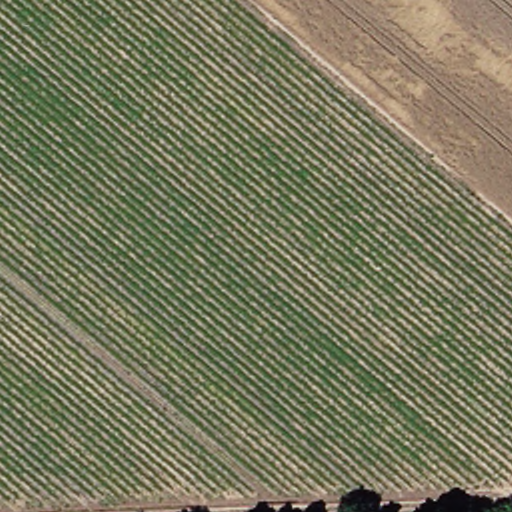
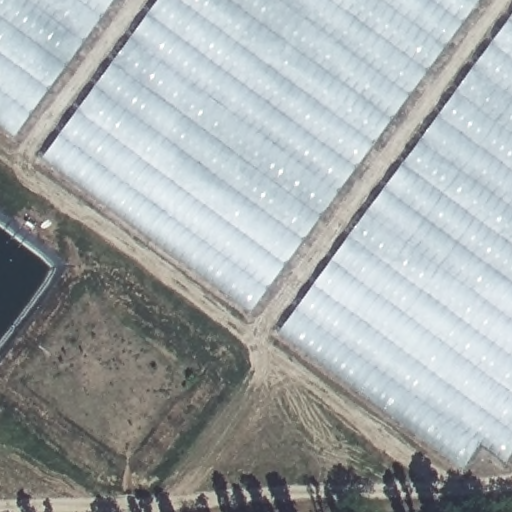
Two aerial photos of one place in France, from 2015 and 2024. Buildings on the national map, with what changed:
new [(0,129),(0,0),(115,0),(13,139),(0,129)]
new [(480,0),(249,313),(40,158),(157,0),(480,0)]
new [(504,464),(478,446),(461,471),(276,334),(512,13),(512,454),(504,464)]

